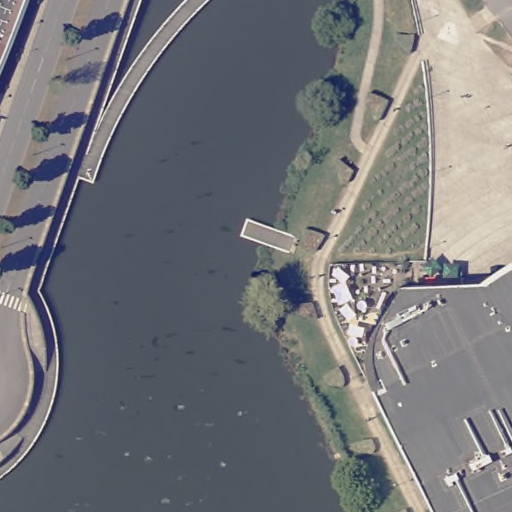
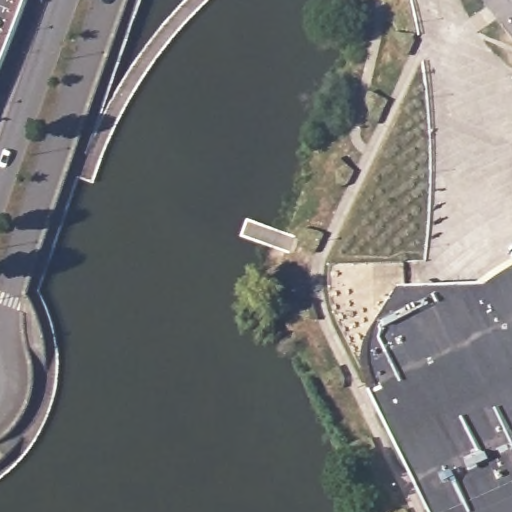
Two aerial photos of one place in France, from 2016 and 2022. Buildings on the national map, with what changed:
unchanged [(0,75),(0,0),(30,0),(0,75)]
unchanged [(377,388),(372,376),(371,366),(370,355),(372,344),(375,333),(383,310),(390,297),(398,289),(426,286),(457,285),(512,278),(512,512),(431,512),(412,474),(376,401),(371,391),(377,388)]

